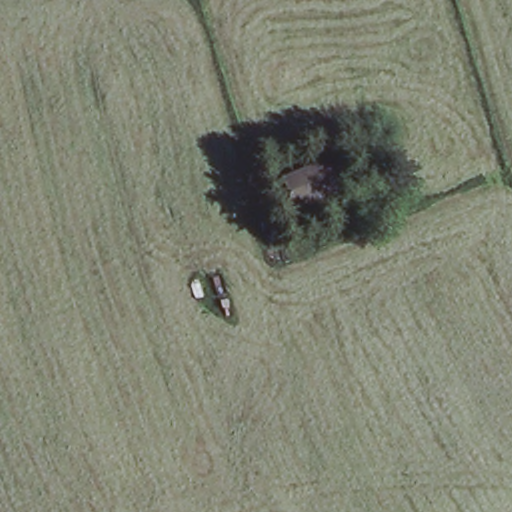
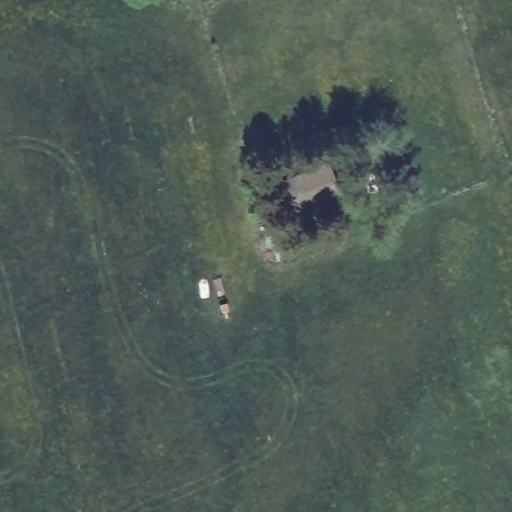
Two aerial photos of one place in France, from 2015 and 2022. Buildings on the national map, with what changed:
unchanged [(332,156),(347,192),(299,212),(280,176),(332,156)]

